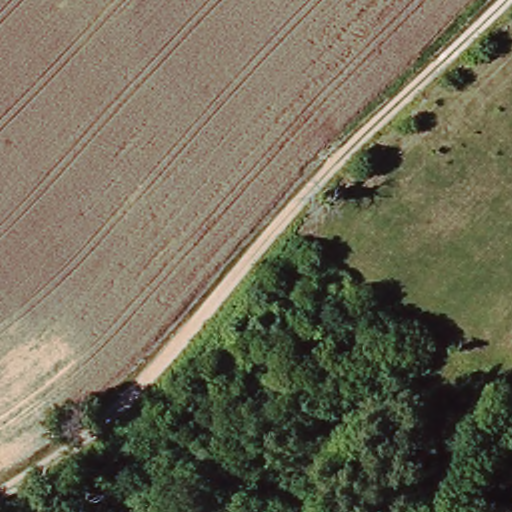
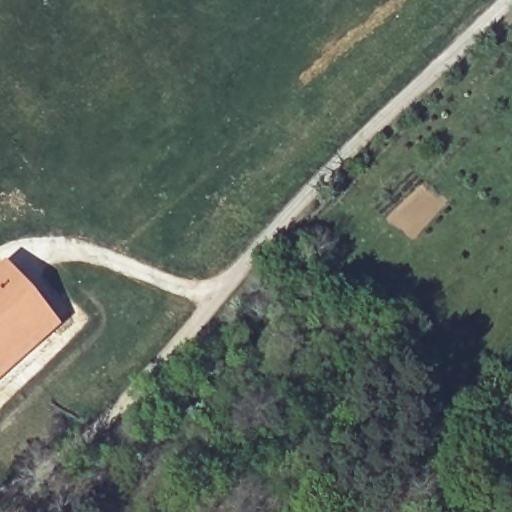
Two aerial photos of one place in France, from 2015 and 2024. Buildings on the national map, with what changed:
new [(55,326),(0,375),(0,276),(6,270),(55,326)]

